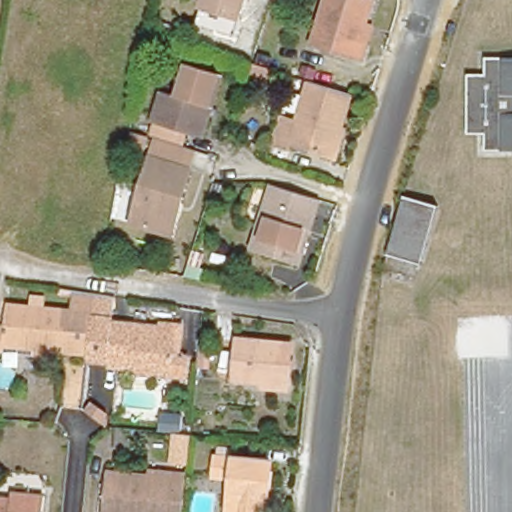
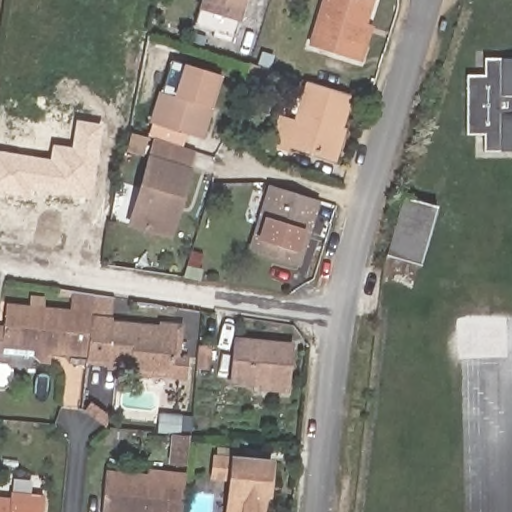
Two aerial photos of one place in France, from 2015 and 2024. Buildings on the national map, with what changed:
unchanged [(199,18),(204,0),(247,0),(240,29),(199,18)]
unchanged [(358,68),(317,55),(333,0),(361,0),(367,2),(360,29),(368,31),(363,49),(358,68)]
unchanged [(487,57),(512,57),(512,148),(485,148),(486,133),(463,132),(464,75),(487,74),(487,57)]
unchanged [(149,136),(152,126),(150,126),(160,95),(174,99),(184,67),(218,78),(199,141),(183,136),(180,146),(149,136)]
unchanged [(327,154),(287,142),(286,146),(269,141),(277,115),(293,119),(306,79),(347,91),(327,154)]
new [(50,159),(52,144),(71,148),(76,120),(102,125),(90,199),(28,190),(27,198),(0,193),(0,151),(50,159)]
unchanged [(161,241),(127,231),(152,141),(194,153),(177,212),(169,243),(161,241)]
unchanged [(300,265),(252,251),(272,185),(319,200),(300,265)]
unchanged [(402,199),(435,209),(418,266),(386,256),(402,199)]
unchanged [(34,354),(35,346),(0,343),(0,326),(2,327),(6,301),(70,308),(71,299),(126,304),(125,318),(178,324),(176,347),(189,348),(186,370),(34,354)]
unchanged [(257,385),(260,376),(229,373),(233,334),(288,339),(285,378),(283,388),(257,385)]
unchanged [(265,457),(262,488),(258,487),(256,512),(223,512),(229,453),(265,457)]
unchanged [(110,468),(156,473),(156,467),(189,471),(189,477),(184,512),(122,512),(105,510),(110,468)]
unchanged [(11,501),(12,496),(41,499),(39,512),(0,512),(0,500),(11,501)]

